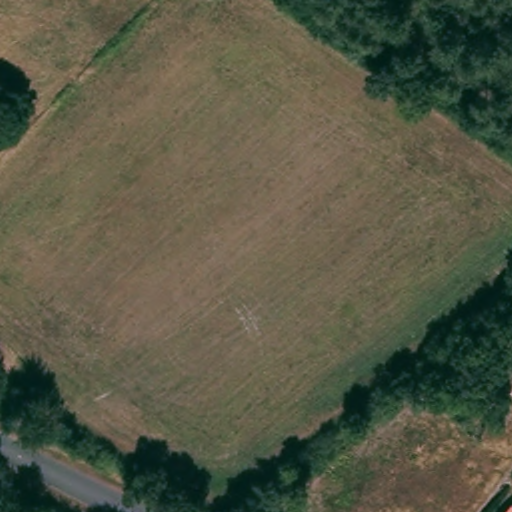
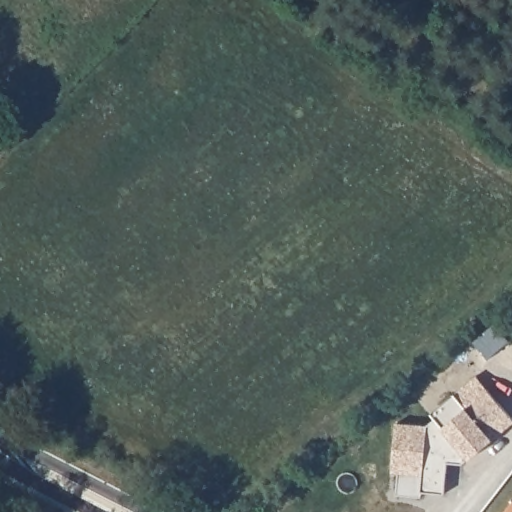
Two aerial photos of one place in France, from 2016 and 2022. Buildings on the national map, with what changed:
new [(381,469),(386,418),(417,421),(432,414),(428,409),(474,371),(512,417),(459,460),(452,464),(437,462),(433,494),(411,491),(410,496),(385,494),(388,470),(381,469)]
unchanged [(508,505),(512,507),(512,512),(502,512),(508,505)]

